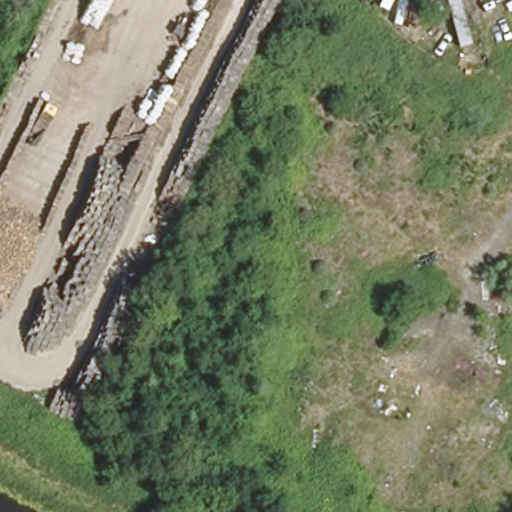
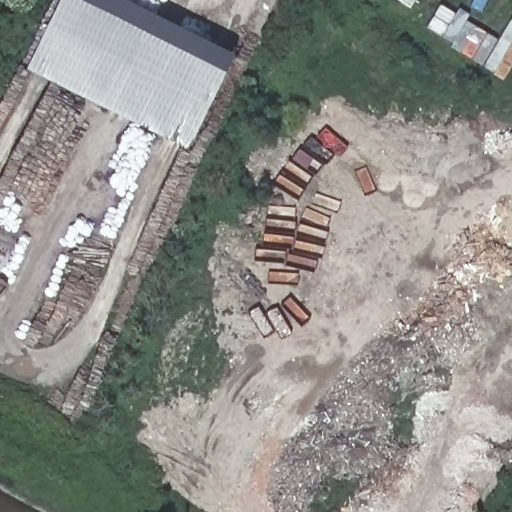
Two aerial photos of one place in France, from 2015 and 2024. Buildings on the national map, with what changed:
new [(225,75),(188,151),(25,70),(61,0),(121,0),(234,56),(225,75)]

